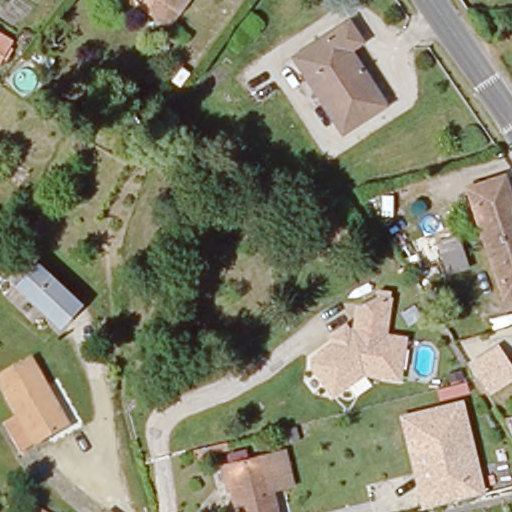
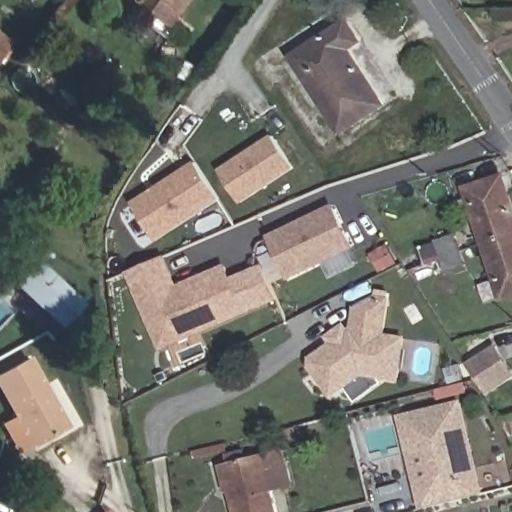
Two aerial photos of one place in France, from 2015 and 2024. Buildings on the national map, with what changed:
unchanged [(136,7),(140,0),(188,0),(166,29),(136,7)]
unchanged [(291,60),(341,24),(353,41),(342,50),(380,108),(340,134),(291,60)]
new [(273,135),(295,170),(242,204),(220,170),(273,135)]
new [(158,242),(133,203),(196,162),(221,201),(158,242)]
unchanged [(498,295),(466,188),(498,177),(504,175),(510,194),(512,200),(512,291),(498,295)]
new [(347,245),(285,274),(266,235),(328,206),(347,245)]
demolished [(304,243),(296,224),(327,210),(340,237),(310,253),(304,243)]
new [(151,325),(127,270),(161,256),(175,287),(189,281),(224,266),(229,276),(258,265),(273,299),(179,338),(160,346),(151,325)]
unchanged [(385,335),(406,337),(402,383),(365,377),(334,403),(310,370),(310,358),(330,345),(326,338),(347,323),(351,331),(355,307),(345,312),(337,296),(373,275),(379,289),(390,294),(385,335)]
unchanged [(39,276),(86,317),(81,322),(65,340),(18,300),(29,288),(39,276)]
unchanged [(491,396),(470,364),(498,345),(512,365),(512,382),(491,396)]
unchanged [(0,418),(15,411),(10,400),(0,382),(0,369),(28,355),(64,423),(52,429),(28,441),(15,447),(0,420),(0,418)]
unchanged [(488,492),(421,510),(398,415),(465,399),(488,492)]
unchanged [(234,512),(232,498),(230,466),(272,456),(288,451),(296,486),(275,492),(277,512),(234,512)]
unchanged [(107,512),(110,510),(112,512),(107,512)]

